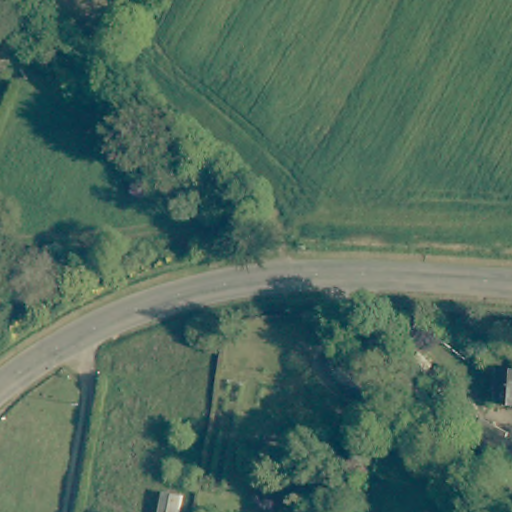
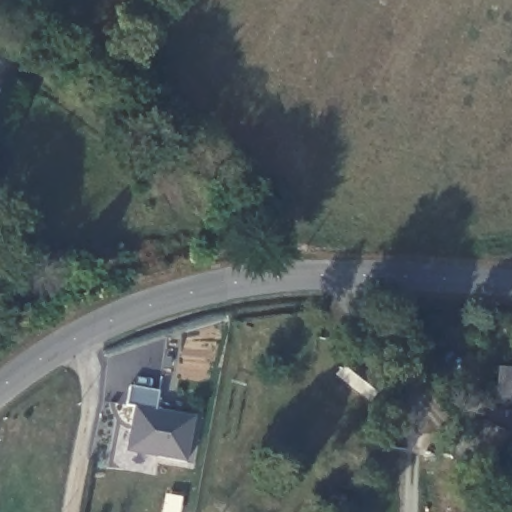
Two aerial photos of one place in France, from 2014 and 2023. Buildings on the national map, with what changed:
unchanged [(371,362),(380,367),(377,373),(382,377),(372,391),(334,367),(343,350),(367,366),(371,362)]
unchanged [(498,366),(512,367),(512,402),(495,400),(498,366)]
new [(131,386),(160,392),(156,410),(197,417),(187,464),(126,452),(135,407),(127,404),(131,386)]
unchanged [(512,431),(502,448),(475,435),(484,417),(512,431)]
demolished [(181,496),(177,512),(159,512),(163,492),(181,496)]

